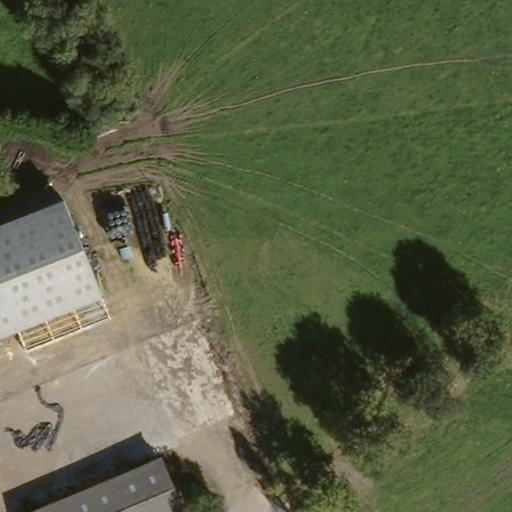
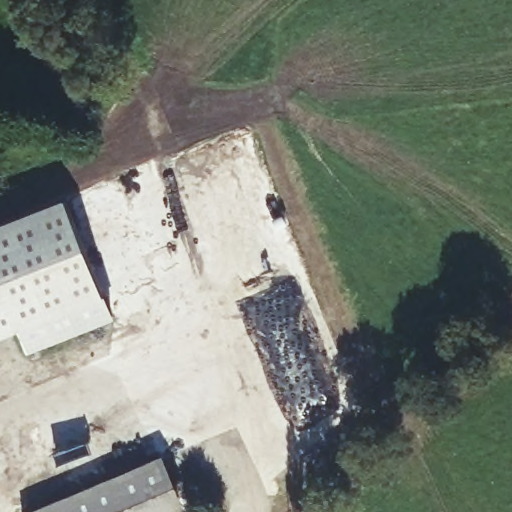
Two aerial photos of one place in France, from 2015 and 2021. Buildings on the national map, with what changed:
unchanged [(25,346),(19,330),(0,338),(0,225),(62,200),(108,315),(25,346)]
unchanged [(179,512),(20,512),(156,456),(179,512)]

